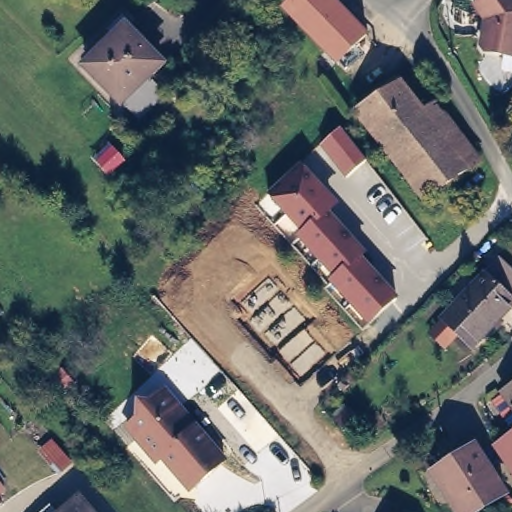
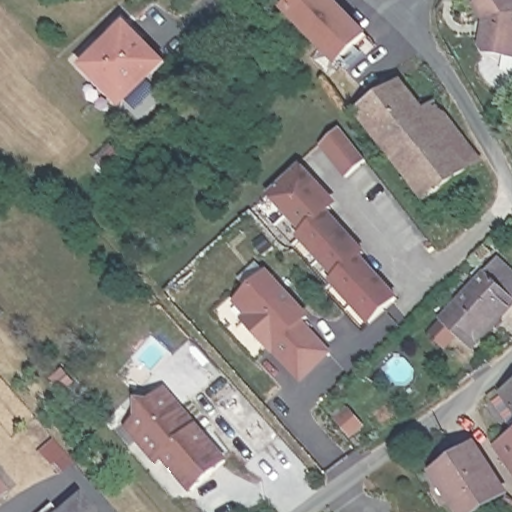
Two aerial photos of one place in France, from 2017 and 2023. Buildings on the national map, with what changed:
unchanged [(331,0),(366,36),(339,64),(285,10),(295,0),(331,0)]
unchanged [(512,0),(512,57),(485,53),(481,48),(484,31),(490,27),(475,6),(484,0),(512,0)]
unchanged [(160,69),(122,106),(87,70),(115,43),(107,34),(122,21),(129,29),(127,32),(160,69)]
unchanged [(460,159),(468,154),(477,166),(428,199),(357,110),(400,81),(460,159)]
unchanged [(365,164),(347,178),(320,147),(340,129),(365,164)]
unchanged [(340,204),(331,214),(367,255),(363,260),(397,299),(369,325),(329,281),(332,278),(297,237),(300,234),(269,199),(303,164),(340,204)]
unchanged [(512,305),(510,307),(472,346),(444,318),(499,262),(512,275),(512,305)]
new [(243,320),(247,316),(235,303),(272,271),(313,318),(308,324),(335,354),(300,385),(243,320)]
unchanged [(512,384),(512,421),(494,396),(512,384)]
unchanged [(145,429),(135,417),(139,414),(140,397),(150,398),(160,390),(165,386),(180,403),(225,456),(185,491),(137,435),(145,429)]
unchanged [(512,430),(512,455),(500,438),(512,430)]
unchanged [(469,449),(498,493),(468,512),(452,512),(428,475),(469,449)]
unchanged [(88,500),(98,512),(73,512),(88,500)]
unchanged [(60,507),(65,512),(53,512),(60,507)]

